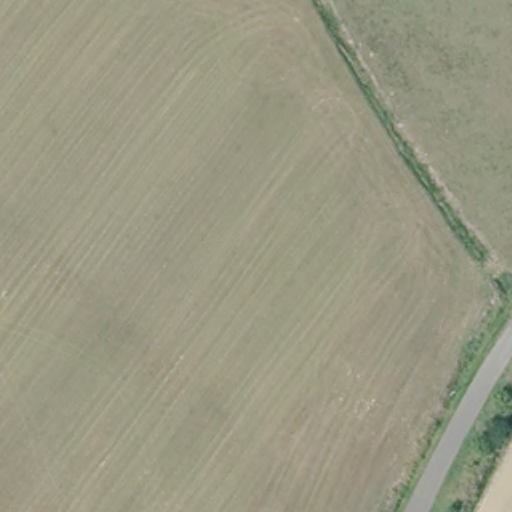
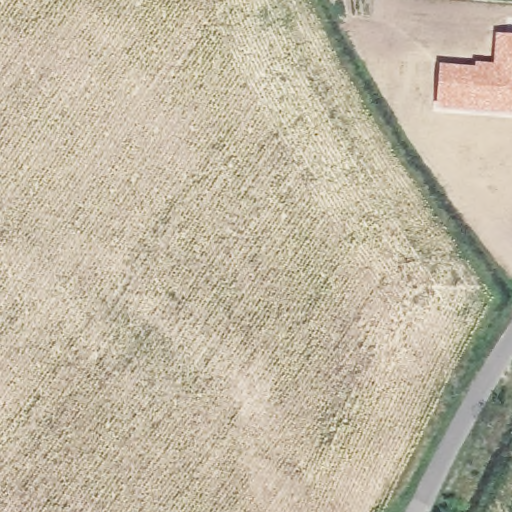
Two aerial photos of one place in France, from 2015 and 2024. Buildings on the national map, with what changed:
new [(439,63),(473,66),(474,61),(491,63),(494,33),(512,35),(512,115),(435,108),(439,63)]

